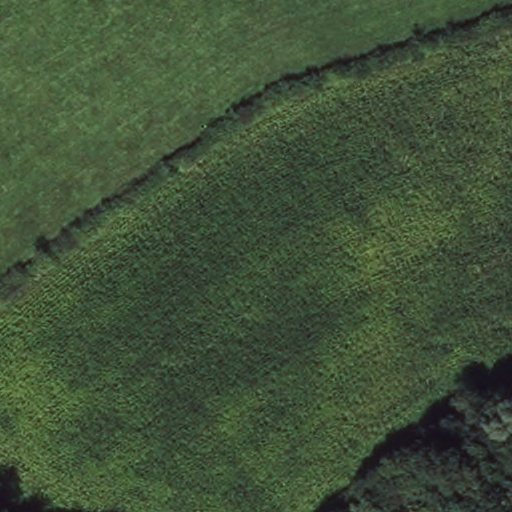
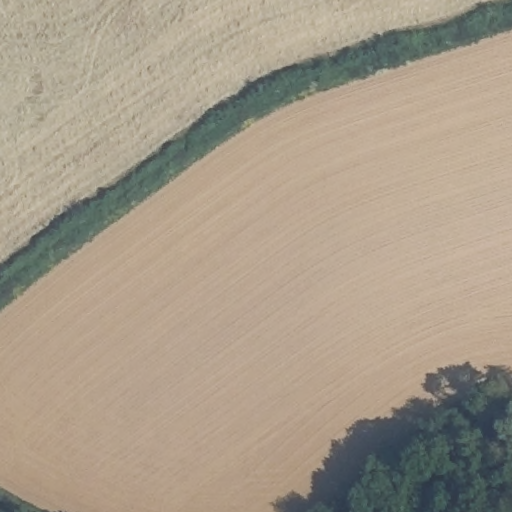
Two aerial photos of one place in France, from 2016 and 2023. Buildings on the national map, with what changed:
[]

